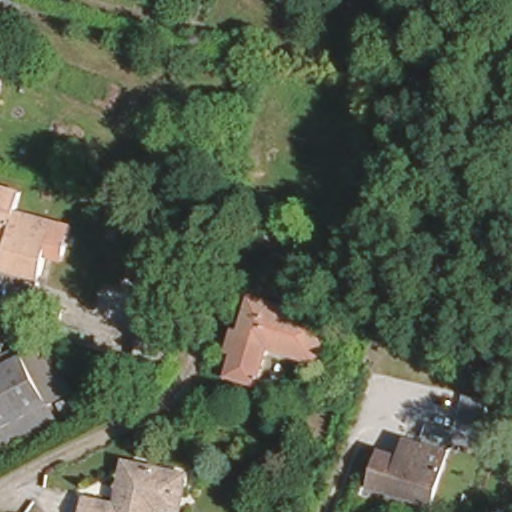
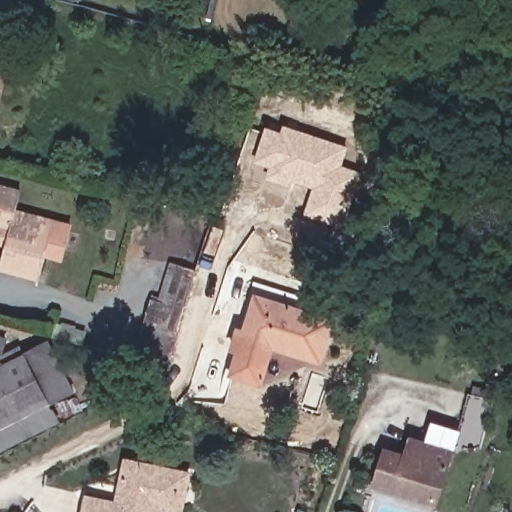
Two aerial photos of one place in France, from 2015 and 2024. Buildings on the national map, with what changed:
unchanged [(6,72),(0,93),(0,71),(6,72)]
new [(313,186),(294,180),(292,186),(266,178),(270,166),(254,161),(266,126),(282,130),(285,125),(349,145),(343,165),(363,171),(345,227),(304,215),(313,186)]
unchanged [(18,185),(13,205),(71,223),(65,250),(46,246),(39,273),(0,260),(8,224),(0,222),(0,180),(18,185)]
unchanged [(157,308),(170,268),(192,275),(179,315),(157,308)]
unchanged [(238,320),(248,321),(258,287),(338,313),(325,356),(277,340),(266,379),(235,369),(241,346),(232,343),(238,320)]
unchanged [(0,365),(0,327),(11,330),(3,365),(0,365)]
unchanged [(13,371),(8,360),(27,351),(53,412),(0,436),(0,377),(13,371)]
unchanged [(438,503),(379,481),(391,447),(410,454),(417,433),(457,449),(438,503)]
unchanged [(80,495),(107,502),(118,505),(125,471),(130,463),(183,476),(180,495),(178,512),(77,512),(80,495)]

